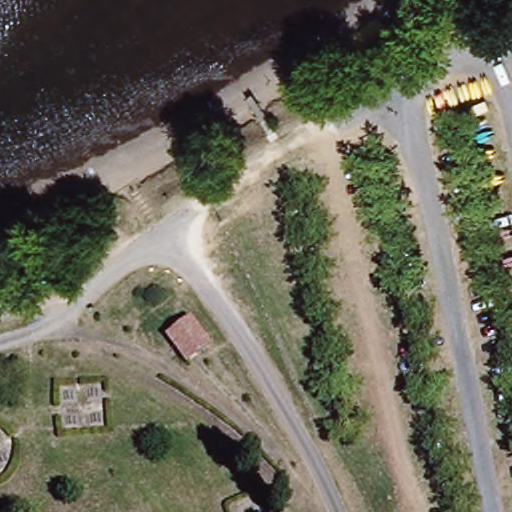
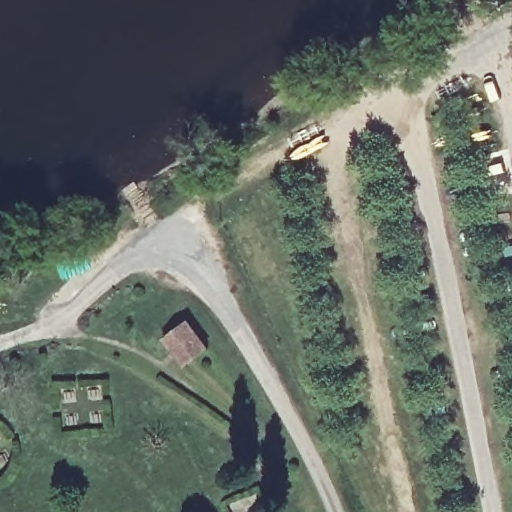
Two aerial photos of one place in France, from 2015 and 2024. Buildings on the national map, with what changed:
unchanged [(210,349),(188,365),(167,339),(189,321),(210,349)]

